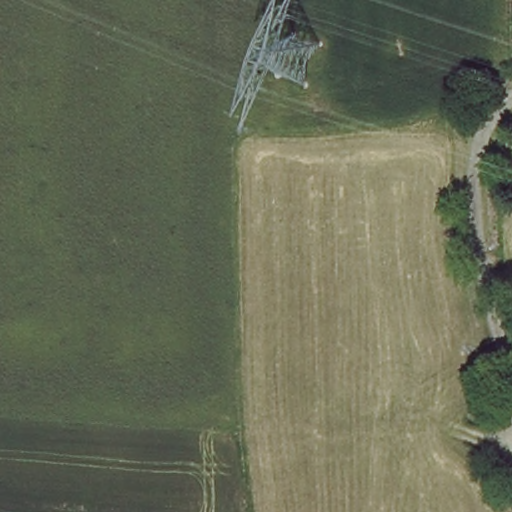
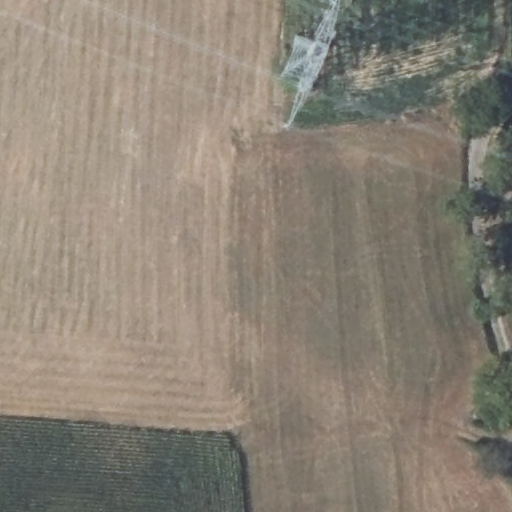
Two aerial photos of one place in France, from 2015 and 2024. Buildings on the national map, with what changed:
[]

